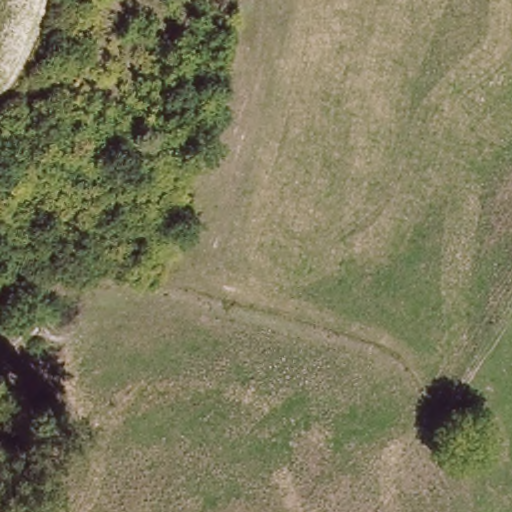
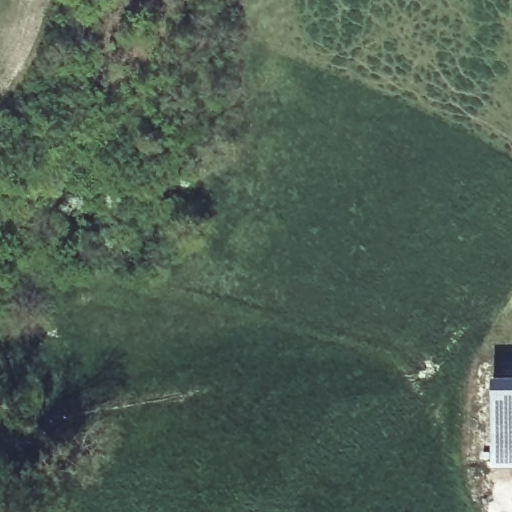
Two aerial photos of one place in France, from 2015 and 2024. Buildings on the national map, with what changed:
new [(492,378),(512,378),(512,466),(492,466),(492,378)]

